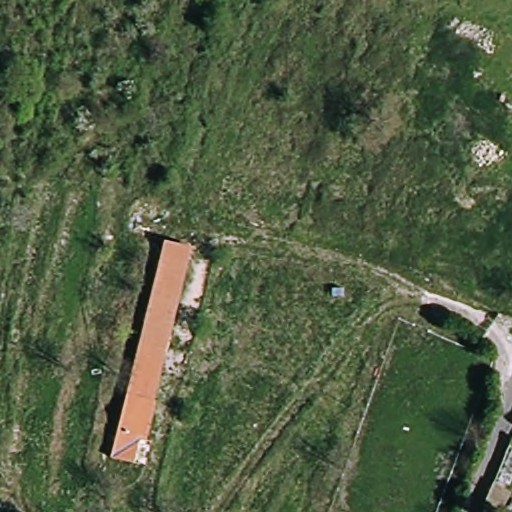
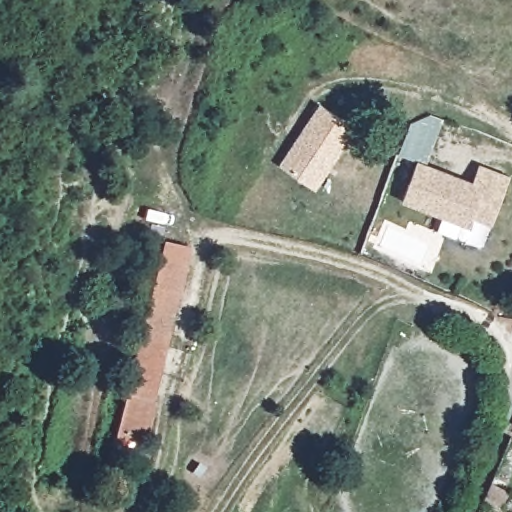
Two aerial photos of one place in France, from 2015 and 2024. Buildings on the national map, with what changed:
new [(319,104),(356,129),(315,190),(278,165),(319,104)]
new [(492,226),(474,219),(470,229),(402,204),(417,163),(473,182),(478,165),(511,177),(492,226)]
unchanged [(164,272),(171,249),(193,254),(186,279),(150,408),(128,401),(164,272)]
unchanged [(132,471),(110,464),(128,401),(150,408),(132,471)]

